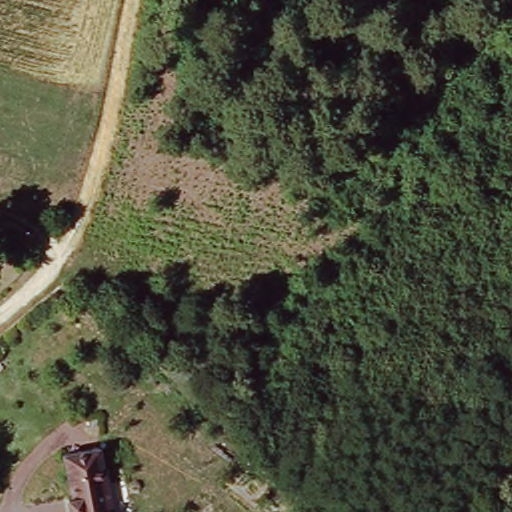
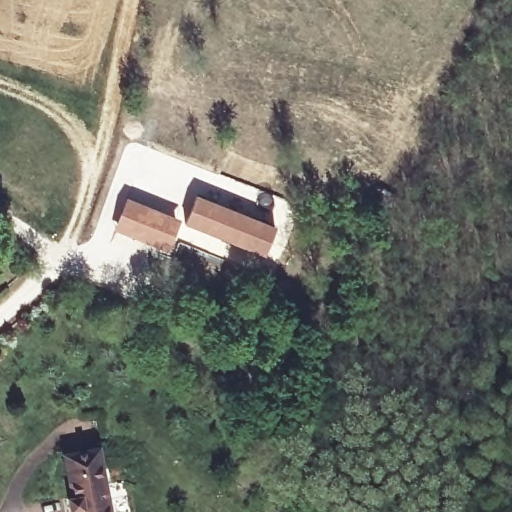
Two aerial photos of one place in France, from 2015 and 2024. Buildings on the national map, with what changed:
new [(183,224),(197,196),(275,228),(264,257),(183,224)]
new [(175,222),(165,247),(117,228),(127,203),(175,222)]
unchanged [(56,496),(62,495),(57,449),(93,444),(100,512),(58,512),(56,496)]

